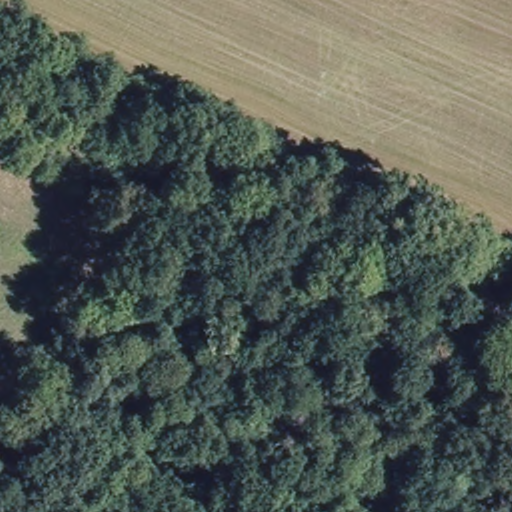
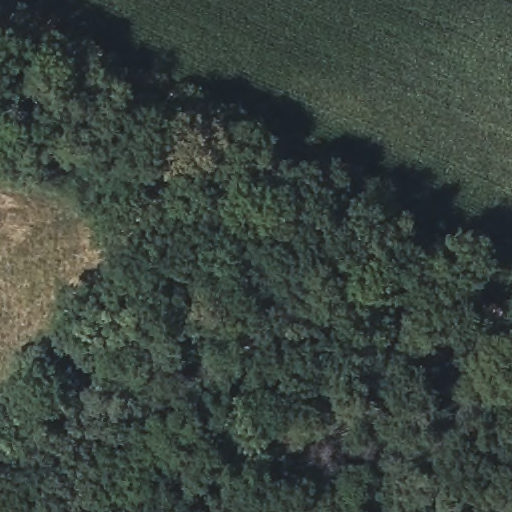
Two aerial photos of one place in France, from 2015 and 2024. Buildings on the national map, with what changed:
[]

